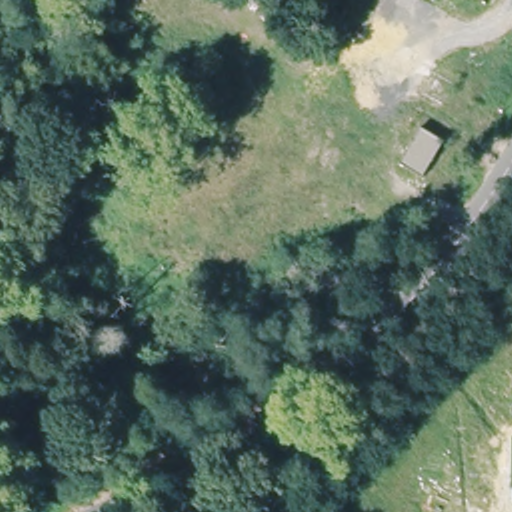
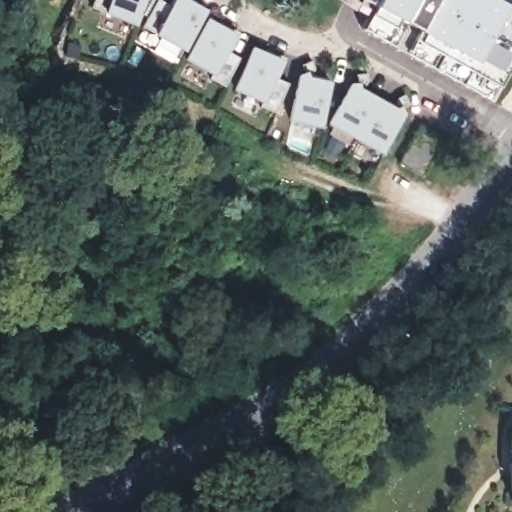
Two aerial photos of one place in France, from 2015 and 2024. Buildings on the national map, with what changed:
new [(105,12),(91,7),(95,0),(146,0),(136,26),(105,12)]
new [(143,26),(159,0),(160,0),(171,7),(175,0),(188,0),(208,11),(185,51),(156,35),(143,26)]
new [(488,100),(364,30),(375,6),(365,0),(493,0),(505,7),(512,11),(512,61),(498,85),(488,100)]
new [(213,77),(185,61),(209,17),(238,34),(228,50),(241,59),(227,85),(213,77)]
new [(281,62),(274,77),(289,84),(276,111),(264,102),(233,88),(252,49),(281,62)]
new [(289,121),(299,71),(313,74),(313,78),(331,82),(321,127),(289,121)]
new [(329,124),(354,80),(363,85),(361,90),(392,107),(395,102),(406,109),(381,154),(329,124)]
unchanged [(447,140),(426,177),(402,163),(424,126),(447,140)]

